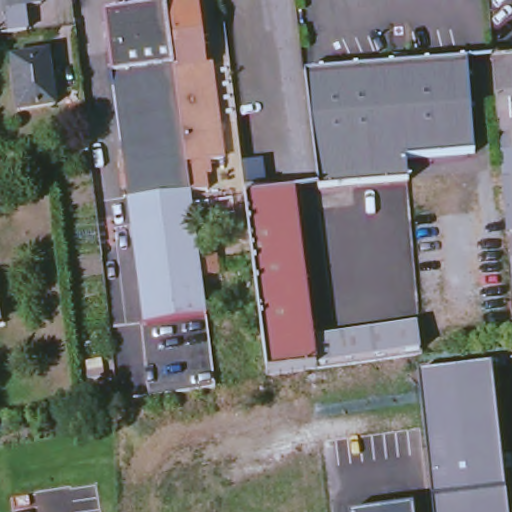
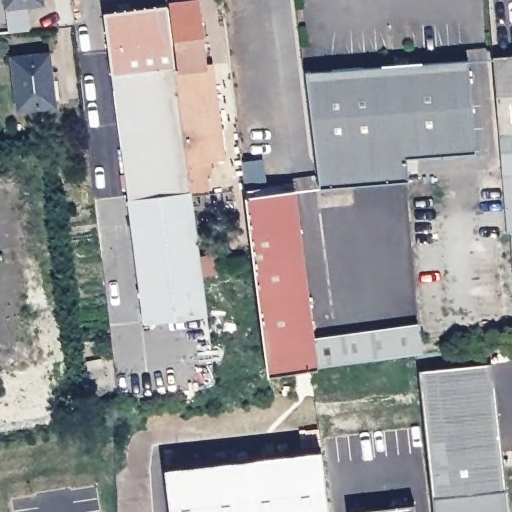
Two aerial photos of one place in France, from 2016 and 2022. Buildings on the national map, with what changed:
unchanged [(25,5),(28,28),(5,31),(0,32),(0,0),(42,0),(42,2),(25,5)]
unchanged [(151,0),(162,0),(168,45),(170,66),(185,186),(201,313),(141,320),(99,7),(151,0)]
unchanged [(170,66),(175,66),(167,0),(192,0),(200,59),(207,58),(219,154),(205,155),(206,168),(201,169),(203,184),(185,186),(170,66)]
unchanged [(501,168),(493,51),(512,50),(512,167),(501,168)]
unchanged [(407,176),(401,176),(317,185),(302,69),(465,54),(474,147),(405,154),(407,176)]
unchanged [(49,55),(55,109),(18,114),(12,60),(49,55)]
unchanged [(275,367),(266,369),(244,189),(241,161),(263,159),(266,186),(294,184),(312,337),(415,318),(420,346),(315,362),(285,367),(275,367)]
unchanged [(504,210),(501,168),(512,167),(512,228),(506,229),(504,210)]
unchanged [(512,228),(512,319),(506,229),(512,228)]
unchanged [(2,324),(0,324),(0,316),(2,324)]
unchanged [(492,363),(505,489),(507,512),(434,512),(433,496),(420,370),(492,363)]
new [(165,473),(321,455),(328,512),(169,512),(165,473)]
unchanged [(412,505),(413,512),(358,512),(412,505)]

